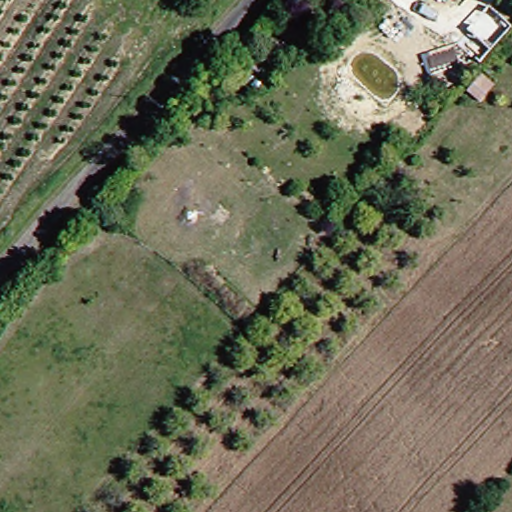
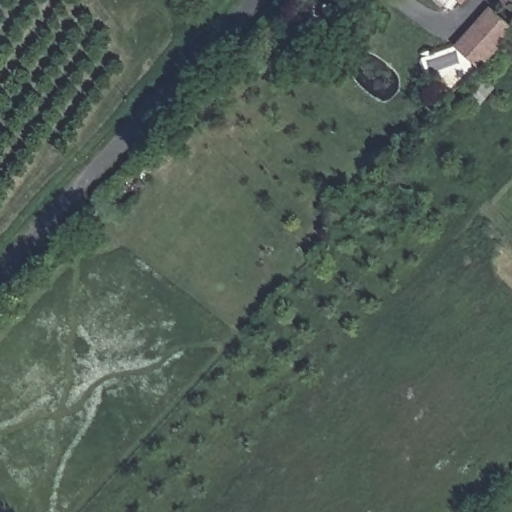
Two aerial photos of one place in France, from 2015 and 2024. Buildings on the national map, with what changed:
new [(479,69),(453,46),(488,6),(512,27),(512,33),(479,69)]

